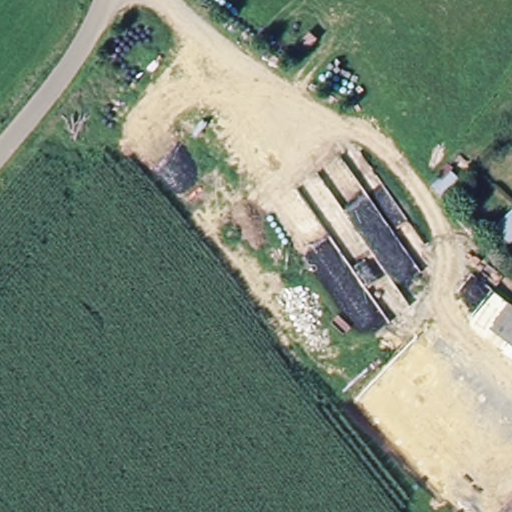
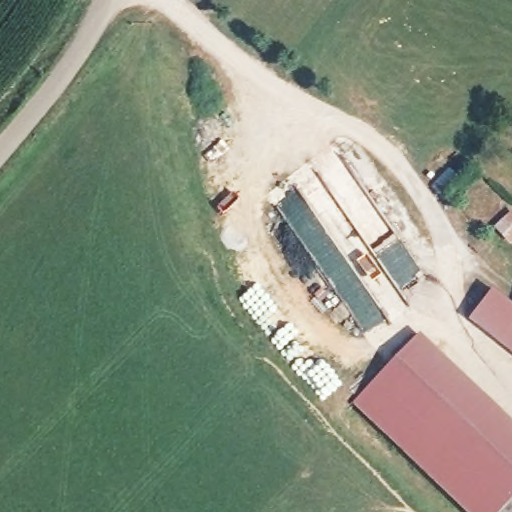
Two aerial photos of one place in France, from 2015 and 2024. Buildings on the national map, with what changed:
unchanged [(431,184),(446,166),(470,183),(454,202),(431,184)]
unchanged [(512,218),(512,245),(494,233),(505,213),(512,218)]
unchanged [(478,324),(494,296),(512,307),(512,347),(478,324)]
demolished [(485,397),(495,381),(459,358),(478,324),(512,347),(512,414),(485,397)]
new [(501,512),(468,512),(352,402),(415,337),(512,432),(512,500),(508,504),(501,512)]
unchanged [(512,500),(512,512),(501,512),(508,504),(512,500)]

